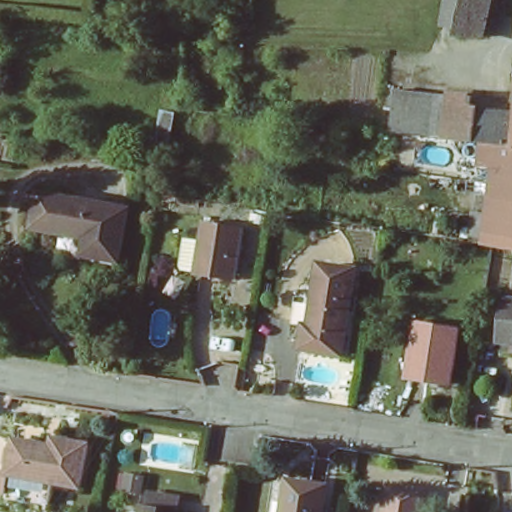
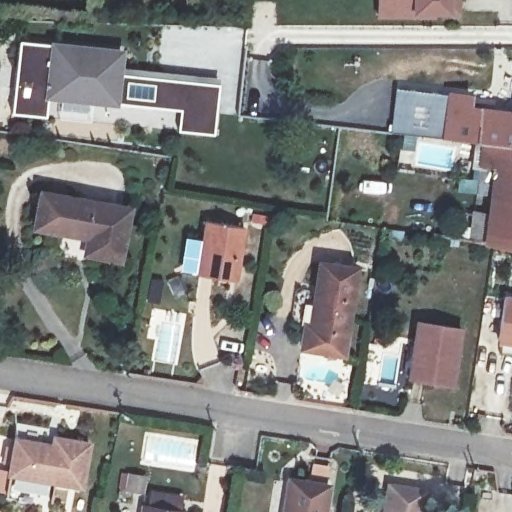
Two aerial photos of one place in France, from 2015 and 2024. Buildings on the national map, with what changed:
new [(454,0),(454,15),(434,15),(434,20),(372,20),(373,0),(454,0)]
demolished [(443,27),(446,13),(449,0),(492,0),(490,33),(443,27)]
new [(216,139),(198,137),(181,135),(183,114),(162,112),(51,98),(48,119),(15,115),(23,42),(125,55),(122,77),(165,82),(187,85),(222,89),(216,139)]
unchanged [(474,101),(473,112),(504,115),(510,62),(512,62),(512,145),(500,144),(447,139),(452,99),(474,101)]
unchanged [(452,99),(447,139),(390,131),(395,90),(452,99)]
unchanged [(500,144),(512,145),(512,221),(491,219),(500,144)]
unchanged [(132,207),(119,264),(78,258),(82,244),(29,231),(37,189),(132,207)]
unchanged [(491,219),(512,221),(512,250),(487,247),(491,219)]
unchanged [(247,230),(237,283),(198,277),(207,224),(247,230)]
unchanged [(356,273),(344,357),(304,351),(307,328),(313,328),(321,267),(356,273)]
unchanged [(502,299),(512,301),(512,348),(494,345),(502,299)]
unchanged [(462,331),(454,386),(410,380),(419,325),(462,331)]
unchanged [(17,436),(52,443),(53,435),(90,442),(81,487),(9,473),(17,436)]
unchanged [(329,487),(325,512),(285,512),(290,480),(329,487)]
unchanged [(145,486),(141,511),(117,507),(120,482),(145,486)]
unchanged [(429,493),(426,512),(388,512),(391,487),(429,493)]
unchanged [(145,508),(173,512),(144,512),(145,508)]

